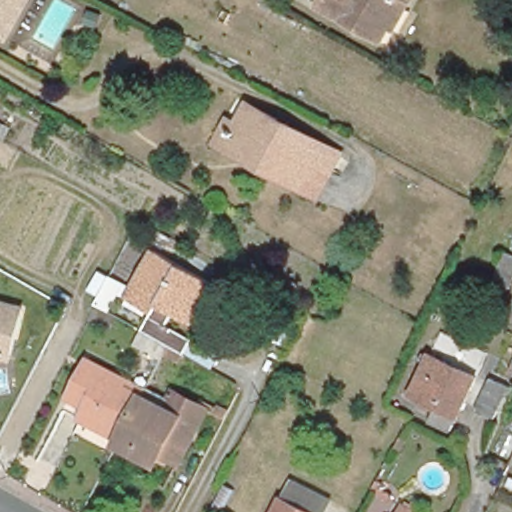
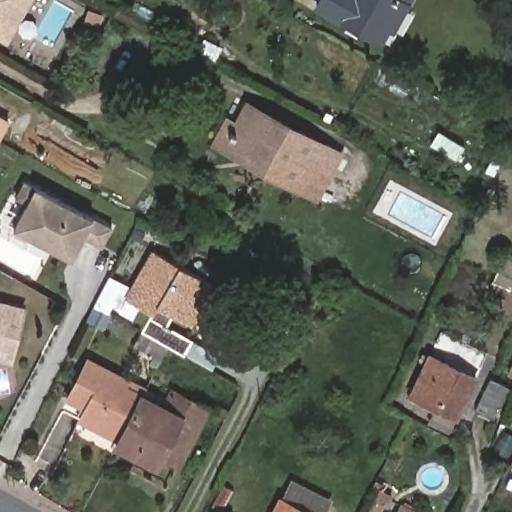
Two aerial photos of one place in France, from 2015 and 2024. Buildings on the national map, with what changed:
unchanged [(0,0),(30,0),(14,28),(5,42),(0,40),(0,0)]
unchanged [(398,32),(390,27),(381,42),(319,8),(324,0),(415,0),(398,32)]
unchanged [(289,186),(251,165),(254,161),(222,143),(212,138),(222,119),(232,124),(244,104),(336,153),(324,175),(312,197),(289,186)]
new [(102,246),(85,237),(72,259),(14,227),(26,204),(15,198),(25,180),(38,187),(95,216),(113,226),(102,246)]
unchanged [(169,304),(161,318),(184,331),(176,346),(156,334),(137,323),(146,306),(118,289),(145,240),(205,274),(190,300),(184,312),(169,304)]
unchanged [(504,283),(488,276),(496,257),(512,264),(512,266),(504,283)]
unchanged [(276,335),(292,304),(309,314),(293,344),(276,335)]
unchanged [(9,354),(0,352),(0,311),(19,316),(9,354)]
unchanged [(507,365),(512,352),(512,367),(507,365)]
unchanged [(114,433),(76,413),(81,402),(63,392),(84,354),(122,375),(120,380),(136,389),(114,433)]
unchanged [(431,419),(437,405),(414,394),(432,354),(475,374),(457,415),(451,429),(431,419)]
unchanged [(494,418),(476,408),(490,379),(508,388),(494,418)]
unchanged [(114,433),(136,389),(160,401),(169,385),(201,402),(172,458),(156,450),(150,460),(132,449),(111,438),(114,433)]
unchanged [(499,477),(512,452),(512,484),(499,477)]
unchanged [(223,511),(213,505),(224,485),(234,490),(223,511)]
unchanged [(276,512),(284,498),(310,512),(276,512)]
unchanged [(418,512),(397,512),(402,503),(418,512)]

